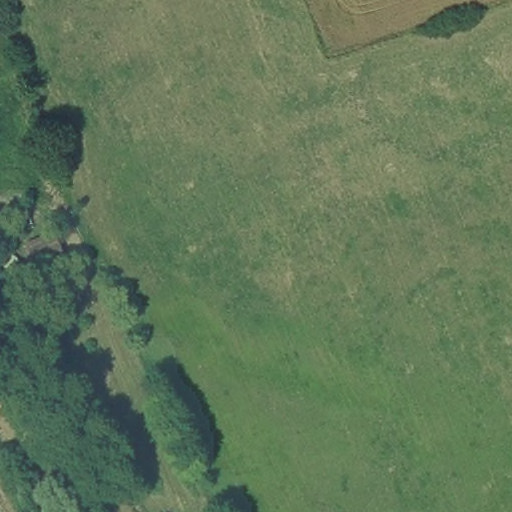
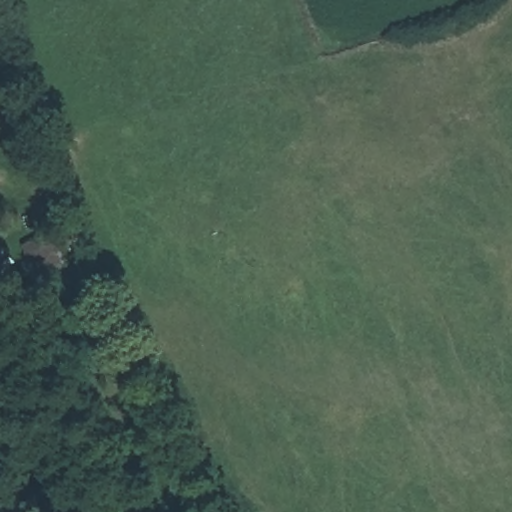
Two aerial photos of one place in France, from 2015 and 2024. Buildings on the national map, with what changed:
unchanged [(25,277),(10,249),(60,229),(69,257),(25,277)]

